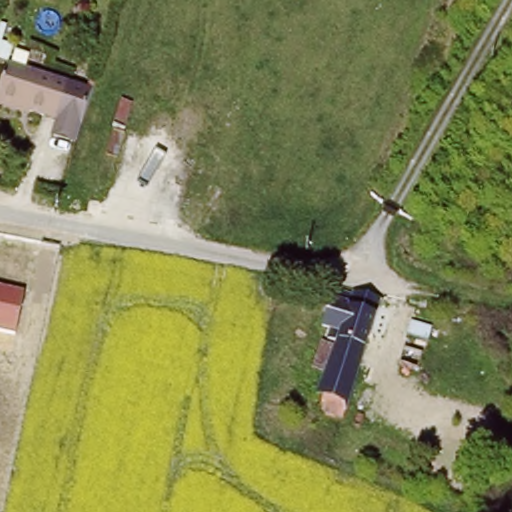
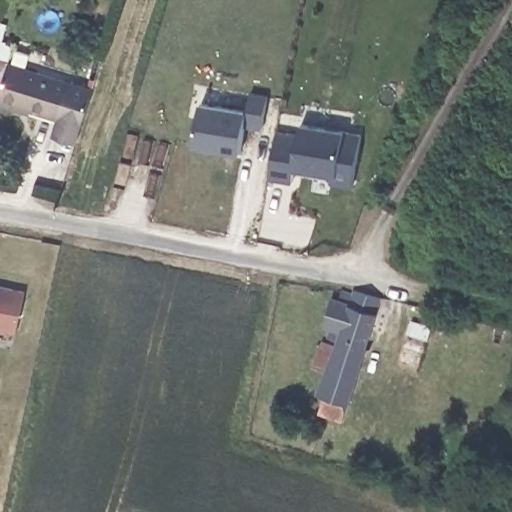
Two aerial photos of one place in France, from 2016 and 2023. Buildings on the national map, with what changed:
unchanged [(0,105),(0,95),(9,68),(92,94),(80,131),(76,146),(50,139),(56,123),(0,105)]
new [(239,155),(194,148),(202,103),(248,110),(250,94),(269,98),(263,128),(245,125),(239,155)]
new [(352,188),(330,184),(332,177),(292,169),(292,183),(269,180),(279,132),(300,135),(303,124),(345,131),(362,135),(352,188)]
unchanged [(15,332),(0,328),(0,285),(25,290),(15,332)]
unchanged [(342,310),(345,301),(353,305),(355,296),(381,302),(340,429),(319,422),(324,403),(318,401),(335,348),(330,347),(334,336),(324,333),(329,305),(342,310)]
unchanged [(403,347),(407,335),(443,346),(439,359),(403,347)]

